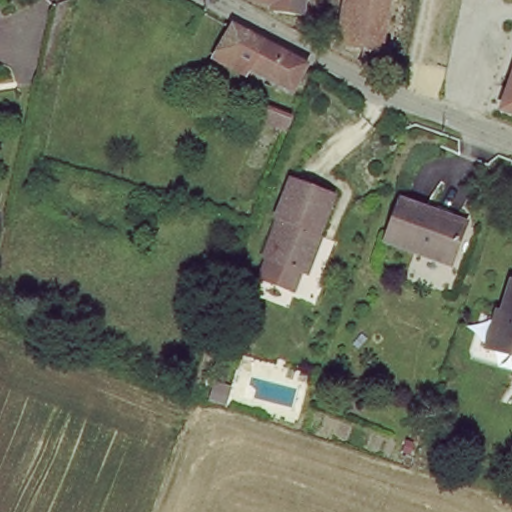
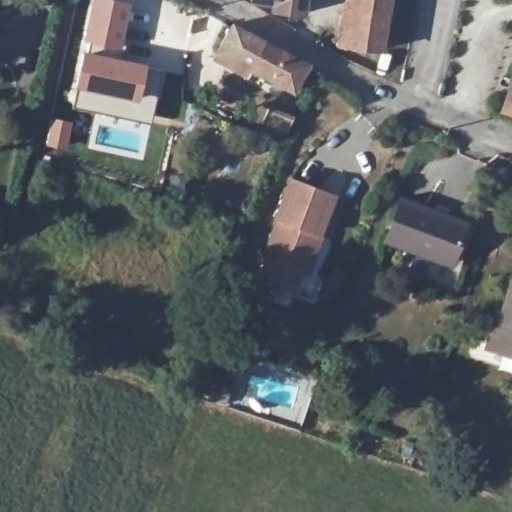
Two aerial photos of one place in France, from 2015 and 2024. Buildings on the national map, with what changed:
new [(119,0),(132,3),(120,56),(79,48),(89,0),(119,0)]
unchanged [(305,17),(274,11),(275,4),(251,1),(251,0),(308,0),(306,14),(305,17)]
unchanged [(338,42),(346,0),(383,0),(375,49),(338,42)]
unchanged [(218,54),(230,27),(303,67),(290,91),(218,54)]
new [(79,48),(120,56),(148,64),(141,91),(157,94),(151,123),(72,107),(79,48)]
unchanged [(512,73),(512,115),(498,110),(512,73)]
unchanged [(269,111),(290,120),(284,136),(263,127),(269,111)]
new [(50,116),(73,121),(66,152),(43,145),(50,116)]
unchanged [(306,261),(304,262),(302,262),(301,261),(294,279),(260,266),(267,246),(265,245),(277,211),(273,210),(291,169),(334,186),(318,227),(306,258),(306,261)]
unchanged [(394,232),(409,197),(468,223),(450,266),(414,250),(390,239),(394,232)]
unchanged [(512,291),(512,352),(493,346),(512,291)]

